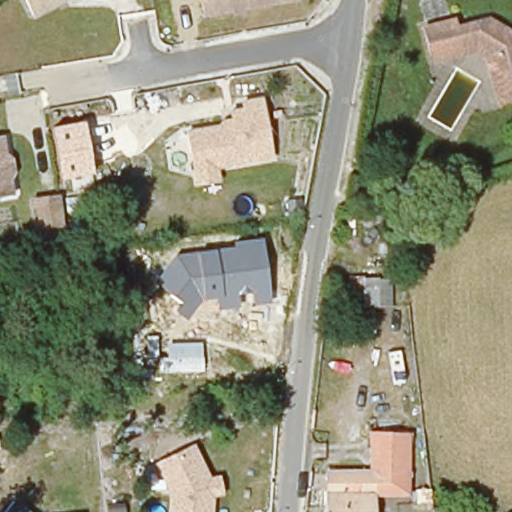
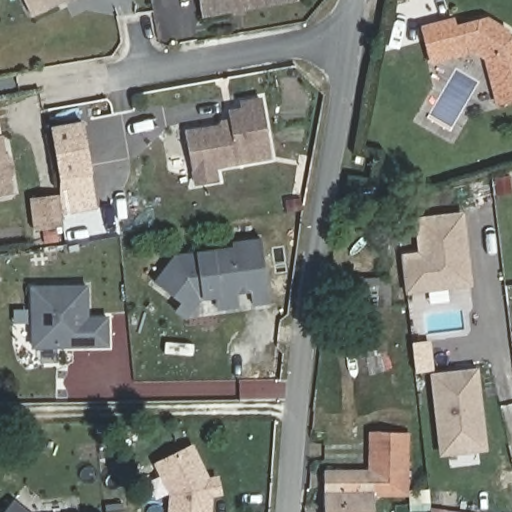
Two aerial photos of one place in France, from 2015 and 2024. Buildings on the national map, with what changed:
unchanged [(30,16),(23,0),(61,0),(30,16)]
unchanged [(202,19),(198,0),(299,0),(299,2),(202,19)]
unchanged [(451,24),(456,30),(490,22),(510,35),(511,47),(512,46),(512,100),(499,104),(488,64),(469,53),(429,63),(422,32),(451,24)]
unchanged [(216,123),(216,119),(226,116),(226,109),(239,106),(237,98),(260,94),(271,161),(216,169),(218,182),(194,186),(182,129),(216,123)]
unchanged [(94,173),(60,178),(52,127),(85,120),(94,173)]
unchanged [(0,192),(0,133),(11,189),(0,192)]
new [(62,214),(56,192),(59,192),(60,178),(91,174),(98,209),(62,214)]
unchanged [(64,223),(61,224),(62,239),(45,242),(42,229),(31,230),(27,197),(56,192),(64,223)]
new [(427,255),(422,220),(467,214),(477,283),(411,293),(406,258),(427,255)]
unchanged [(270,302),(253,304),(251,292),(238,293),(239,306),(218,309),(217,298),(201,299),(187,319),(176,311),(181,301),(155,279),(178,252),(235,245),(234,241),(264,237),(270,302)]
unchanged [(378,306),(347,307),(346,277),(379,278),(378,306)]
new [(111,347),(33,348),(32,286),(89,285),(90,316),(110,316),(111,347)]
new [(480,369),(488,451),(443,455),(435,374),(480,369)]
unchanged [(382,467),(383,428),(417,428),(415,487),(381,487),(380,512),(336,512),(337,467),(382,467)]
unchanged [(220,474),(226,496),(214,499),(213,512),(169,512),(170,495),(154,464),(194,444),(211,477),(220,474)]
unchanged [(36,512),(4,512),(16,497),(36,512)]

